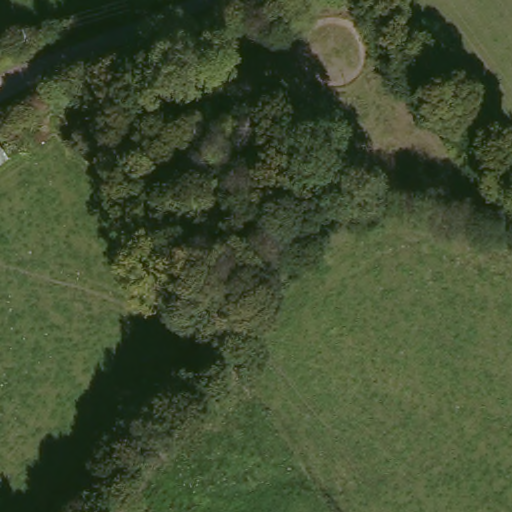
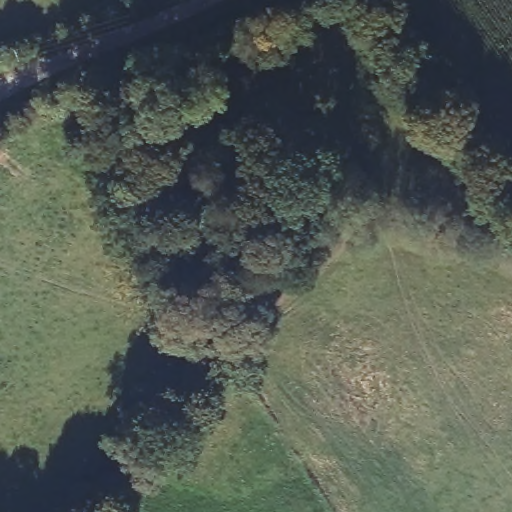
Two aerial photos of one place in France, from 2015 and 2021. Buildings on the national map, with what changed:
[]

